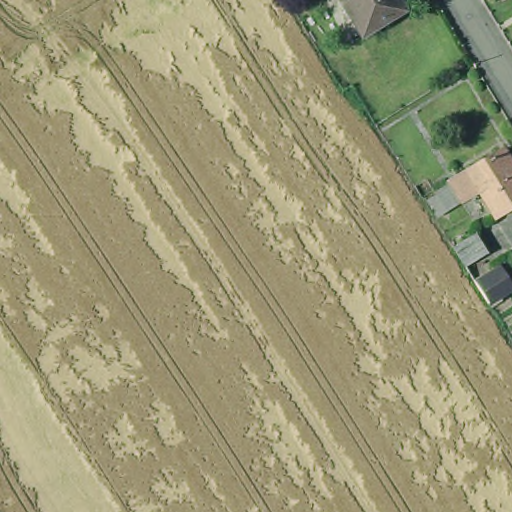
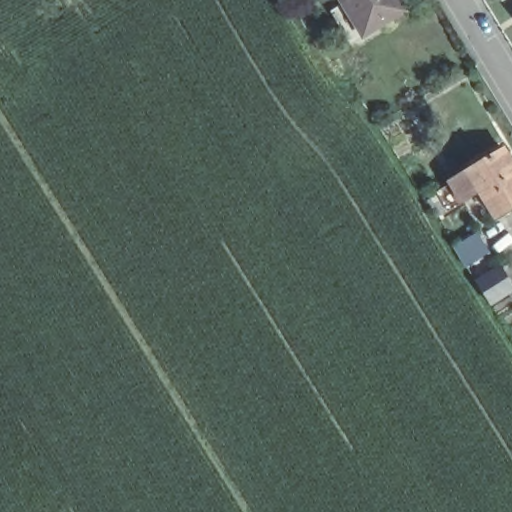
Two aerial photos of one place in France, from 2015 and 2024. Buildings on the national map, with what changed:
unchanged [(400,7),(358,32),(339,0),(396,0),(400,7)]
unchanged [(455,182),(472,171),(510,149),(512,152),(512,210),(500,217),(484,191),(466,201),(452,210),(438,189),(453,179),(455,182)]
unchanged [(466,237),(478,256),(462,266),(450,247),(466,237)]
unchanged [(470,279),(495,264),(510,288),(485,303),(470,279)]

